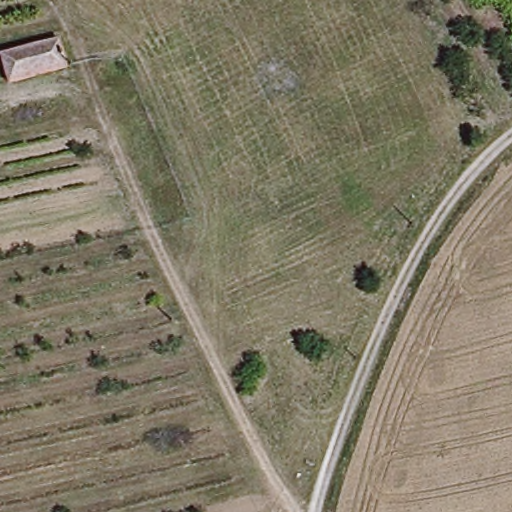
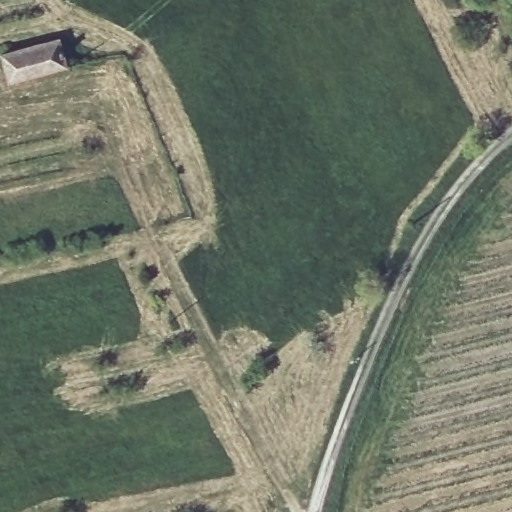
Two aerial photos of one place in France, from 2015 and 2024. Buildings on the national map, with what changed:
unchanged [(16,81),(9,55),(61,42),(69,68),(16,81)]

